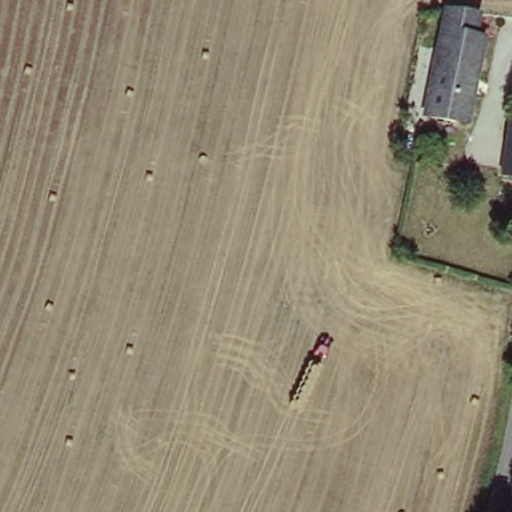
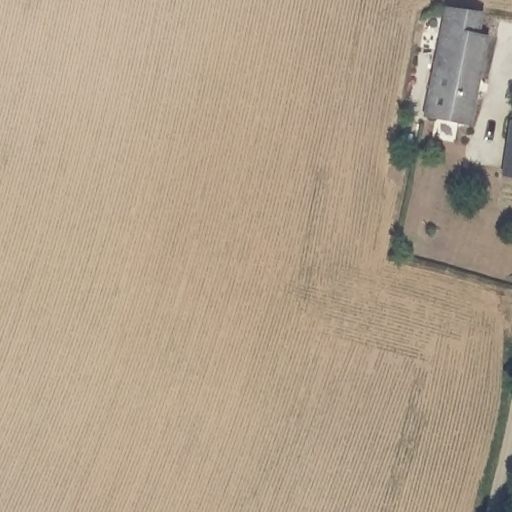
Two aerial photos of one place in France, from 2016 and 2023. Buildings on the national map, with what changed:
unchanged [(474,12),(470,34),(483,40),(460,121),(420,110),(445,7),(474,12)]
unchanged [(504,177),(507,119),(512,119),(512,177),(504,177)]

